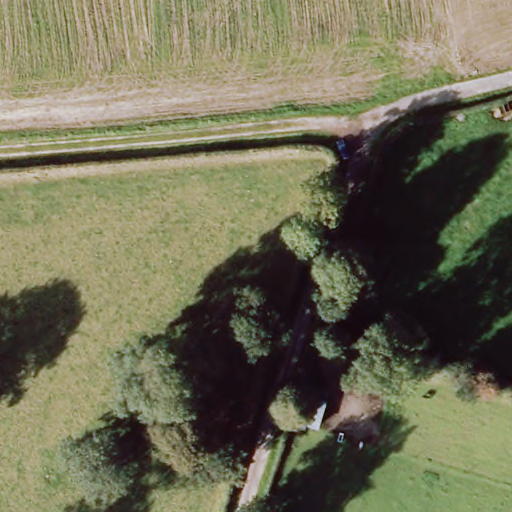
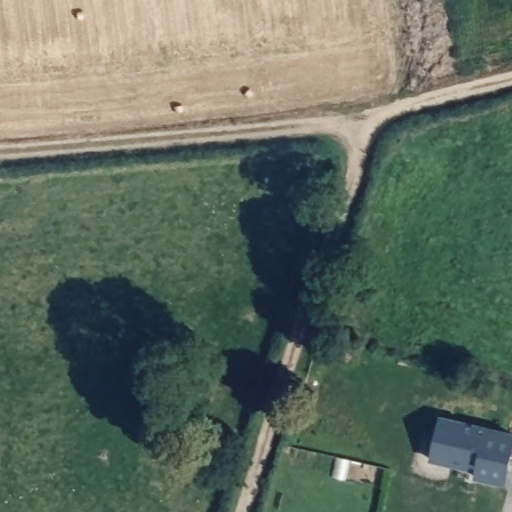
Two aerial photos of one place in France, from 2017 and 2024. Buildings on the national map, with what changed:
new [(440,415),(512,432),(512,453),(506,479),(430,461),(440,415)]

